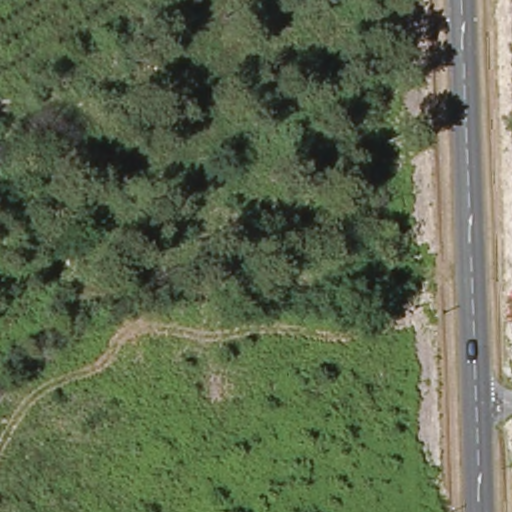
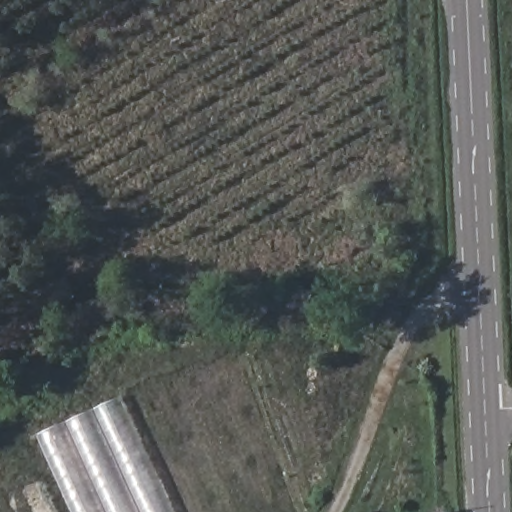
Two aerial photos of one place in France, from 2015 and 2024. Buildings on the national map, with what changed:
new [(39,435),(120,398),(174,512),(73,512),(39,435)]

